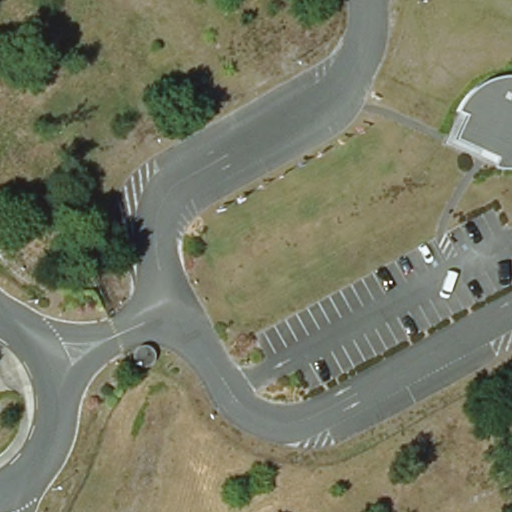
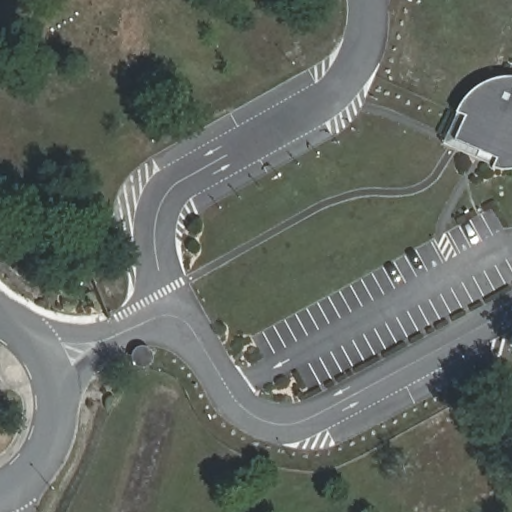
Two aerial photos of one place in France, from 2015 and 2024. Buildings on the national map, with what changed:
unchanged [(488,169),(491,158),(450,141),(462,117),(452,109),(463,96),(476,85),(487,80),(497,78),(512,80),(512,167),(501,170),(488,169)]

